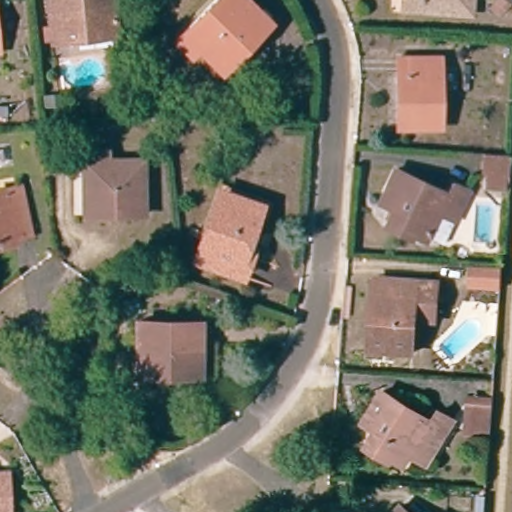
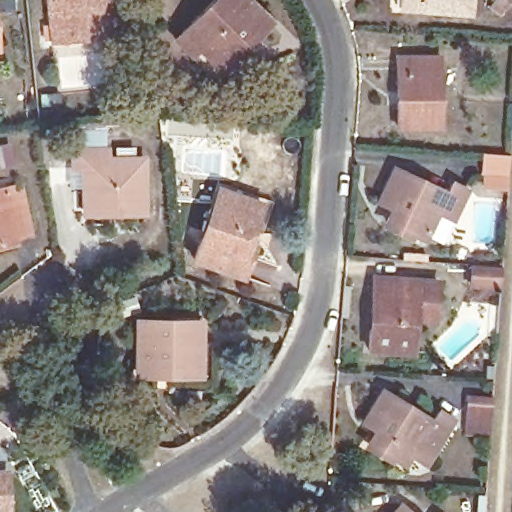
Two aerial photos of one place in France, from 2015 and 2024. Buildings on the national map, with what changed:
unchanged [(0,54),(0,0),(5,54),(0,54)]
unchanged [(56,36),(51,0),(85,0),(85,1),(96,0),(118,0),(120,21),(121,30),(80,34),(56,36)]
unchanged [(198,48),(190,56),(171,36),(179,28),(207,0),(249,0),(270,20),(252,38),(220,70),(213,63),(198,48)]
unchanged [(405,0),(475,0),(475,11),(405,6),(405,0)]
unchanged [(445,59),(440,128),(401,125),(405,58),(445,59)]
unchanged [(106,146),(106,151),(143,153),(142,209),(124,209),(125,203),(85,203),(85,163),(75,163),(75,146),(106,146)]
unchanged [(488,180),(490,166),(483,166),(483,148),(508,149),(507,167),(507,180),(488,180)]
unchanged [(412,233),(409,236),(374,213),(384,200),(372,190),(391,162),(436,193),(443,183),(459,194),(441,220),(426,243),(412,233)]
unchanged [(244,268),(237,265),(192,247),(202,224),(222,177),(228,180),(265,195),(254,223),(262,225),(244,268)]
unchanged [(0,186),(26,182),(34,226),(15,230),(16,238),(0,240),(0,186)]
unchanged [(500,252),(497,272),(468,270),(470,250),(500,252)]
unchanged [(437,286),(436,322),(419,322),(417,356),(370,353),(371,336),(373,283),(391,284),(426,286),(437,286)]
unchanged [(160,374),(161,369),(138,369),(140,317),(205,318),(204,365),(204,375),(160,374)]
unchanged [(487,421),(463,419),(466,387),(490,388),(487,421)]
unchanged [(409,452),(402,463),(367,440),(375,428),(362,420),(382,388),(430,416),(437,407),(452,416),(435,446),(426,462),(409,452)]
unchanged [(5,511),(0,511),(0,469),(2,469),(5,511)]
unchanged [(401,497),(419,512),(388,512),(401,497)]
unchanged [(437,510),(440,512),(435,512),(437,510)]

